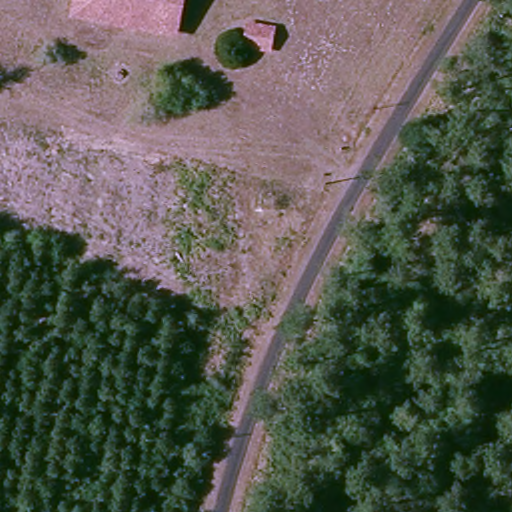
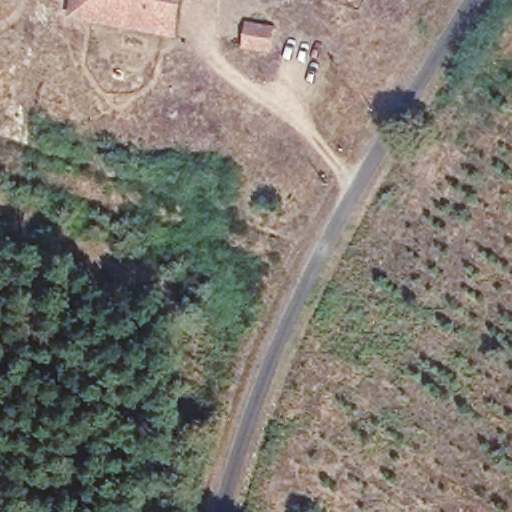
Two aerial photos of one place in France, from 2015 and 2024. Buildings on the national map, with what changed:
unchanged [(189,0),(184,36),(75,20),(78,0),(189,0)]
unchanged [(250,16),(277,22),(274,44),(246,37),(250,16)]

